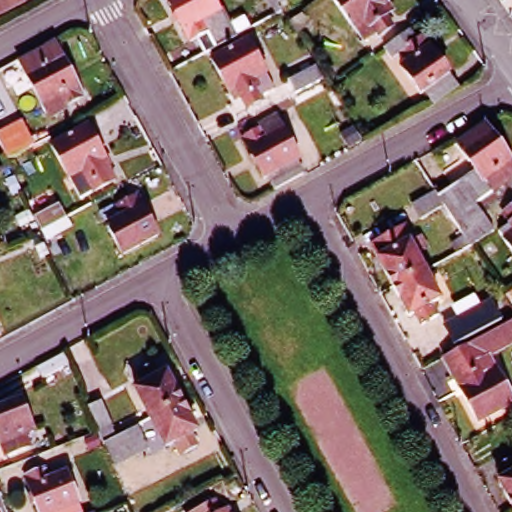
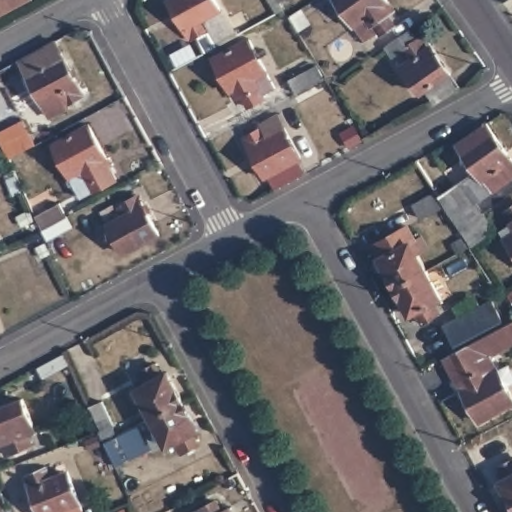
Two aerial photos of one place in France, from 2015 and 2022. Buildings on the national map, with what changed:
unchanged [(18,0),(0,10),(0,0),(18,0)]
unchanged [(192,36),(172,0),(217,0),(232,28),(237,25),(240,31),(220,42),(205,50),(197,34),(192,36)]
unchanged [(355,17),(347,24),(329,0),(378,0),(379,1),(384,8),(377,13),(384,23),(367,35),(355,17)]
unchanged [(435,100),(427,87),(422,90),(404,62),(411,57),(405,48),(394,55),(387,46),(412,28),(418,36),(425,31),(462,86),(435,100)]
unchanged [(233,90),(215,55),(250,36),(277,85),(265,92),(267,96),(251,104),(245,93),(237,97),(233,90)]
unchanged [(69,109),(70,112),(53,122),(21,61),(56,43),(87,99),(69,109)]
unchanged [(309,69),(317,83),(291,97),(284,83),(309,69)]
unchanged [(299,157),(305,170),(276,185),(269,173),(267,174),(247,135),(250,134),(243,120),(257,113),(262,123),(279,114),(301,156),(299,157)]
unchanged [(447,210),(443,203),(442,201),(419,216),(410,203),(434,188),(436,192),(445,186),(435,171),(457,155),(449,145),(484,121),(512,162),(512,171),(475,196),(484,207),(485,207),(496,224),(495,225),(470,244),(469,243),(466,238),(454,246),(449,238),(460,230),(458,225),(447,210)]
unchanged [(18,122),(31,147),(5,161),(0,150),(0,131),(18,122)]
unchanged [(89,188),(79,169),(66,176),(49,143),(85,124),(102,157),(107,164),(100,168),(105,179),(89,188)]
unchanged [(135,191),(157,231),(122,250),(100,210),(135,191)]
unchanged [(57,199),(67,218),(53,226),(40,233),(30,213),(57,199)]
unchanged [(502,214),(512,207),(512,229),(507,222),(502,214)]
unchanged [(371,243),(395,231),(413,221),(421,235),(427,232),(434,245),(417,255),(423,267),(392,284),(377,255),(371,243)]
unchanged [(512,233),(512,255),(502,240),(512,233)]
unchanged [(419,321),(412,309),(407,312),(392,284),(423,267),(438,295),(431,299),(437,311),(419,321)]
unchanged [(512,305),(507,299),(512,296),(512,305)]
unchanged [(509,318),(453,348),(442,327),(499,298),(509,318)]
unchanged [(475,423),(442,359),(512,321),(512,343),(487,357),(511,404),(475,423)]
unchanged [(32,371),(58,357),(65,371),(39,384),(32,371)]
unchanged [(140,380),(135,370),(151,361),(157,372),(162,369),(177,398),(148,414),(132,384),(140,380)]
unchanged [(163,443),(148,414),(177,398),(192,427),(187,430),(192,441),(177,449),(169,454),(163,443)]
unchanged [(19,435),(23,446),(0,455),(0,408),(15,402),(27,432),(19,435)]
unchanged [(97,407),(111,436),(95,444),(90,432),(82,414),(97,407)]
unchanged [(98,446),(120,434),(132,455),(109,467),(98,446)]
unchanged [(28,472),(47,465),(50,475),(68,468),(85,512),(44,512),(28,472)]
unchanged [(512,467),(512,480),(507,470),(512,467)]
unchanged [(512,481),(512,490),(509,483),(512,481)]
unchanged [(218,510),(225,506),(228,512),(184,512),(212,497),(218,510)]

